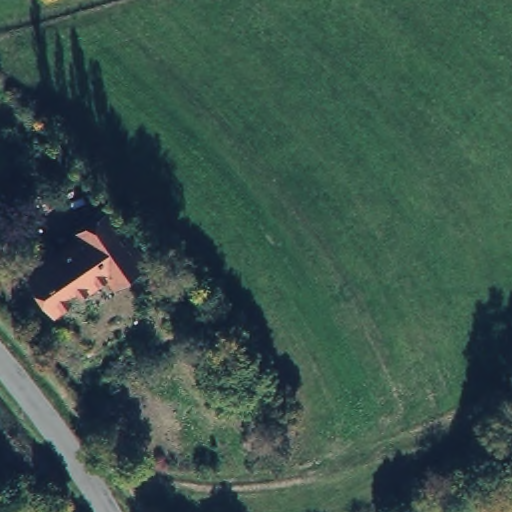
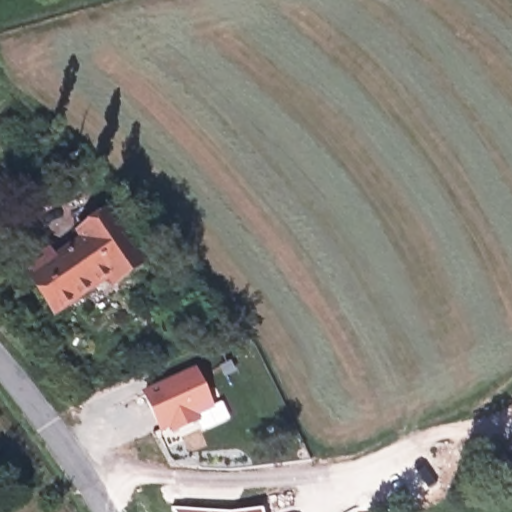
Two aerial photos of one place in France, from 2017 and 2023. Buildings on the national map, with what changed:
unchanged [(28,282),(38,274),(32,266),(45,255),(53,262),(82,237),(77,229),(108,205),(146,252),(119,276),(110,268),(56,314),(28,282)]
new [(197,416),(199,422),(174,433),(171,428),(160,432),(142,392),(196,369),(213,409),(197,416)]
new [(262,512),(233,512),(262,509),(262,512)]
new [(233,512),(174,512),(173,510),(233,512)]

